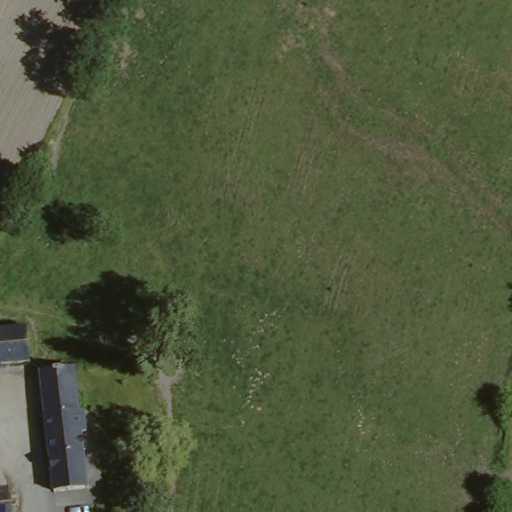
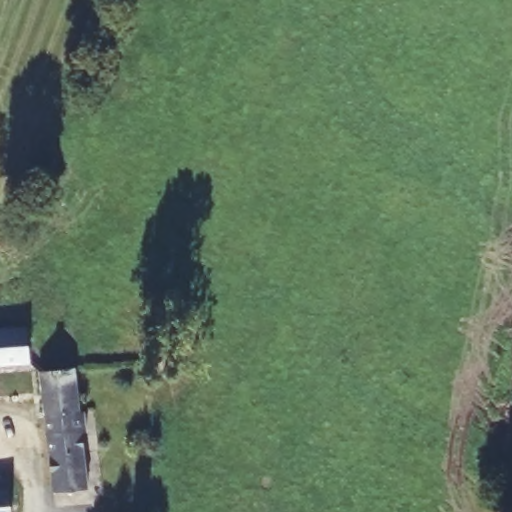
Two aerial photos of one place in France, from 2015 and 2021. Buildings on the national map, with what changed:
unchanged [(24,367),(0,369),(0,333),(22,332),(24,367)]
unchanged [(88,416),(90,434),(82,434),(88,487),(55,490),(43,378),(74,374),(79,417),(88,416)]
unchanged [(8,486),(10,512),(0,512),(0,487),(8,486)]

